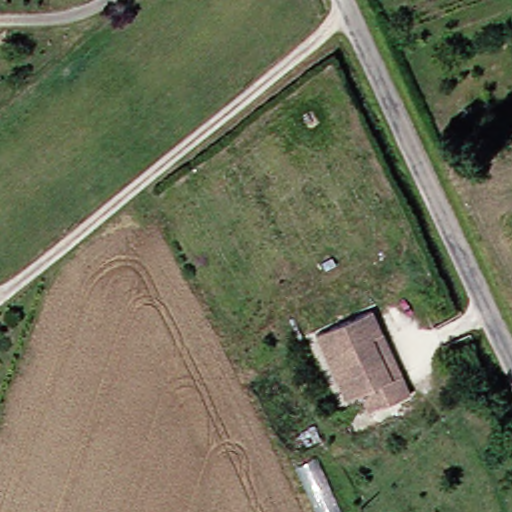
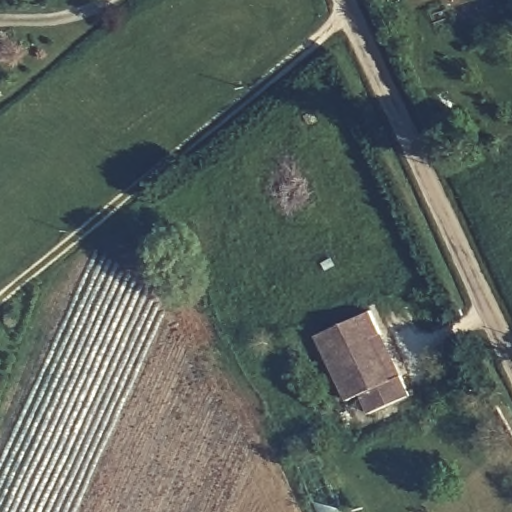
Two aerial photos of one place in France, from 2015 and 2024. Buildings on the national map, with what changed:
unchanged [(390,337),(406,380),(413,400),(372,416),(364,396),(350,402),(325,334),(381,313),(390,337)]

